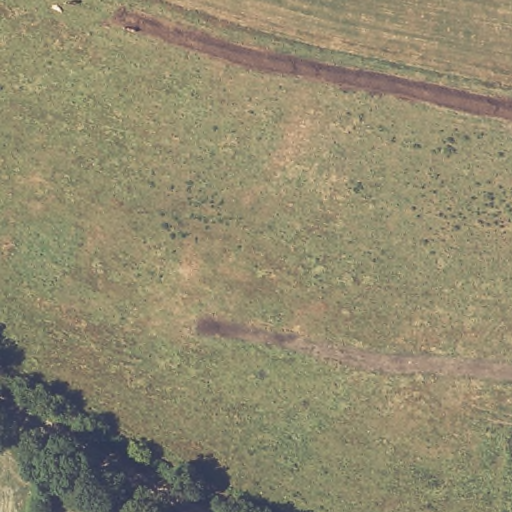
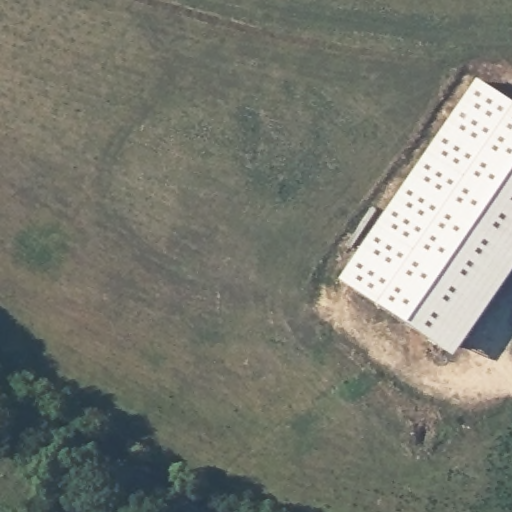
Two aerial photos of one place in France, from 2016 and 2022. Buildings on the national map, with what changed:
new [(476,79),(512,103),(512,273),(453,359),(337,282),(476,79)]

